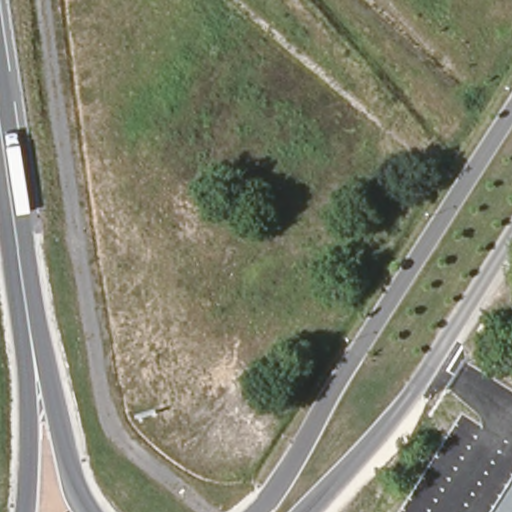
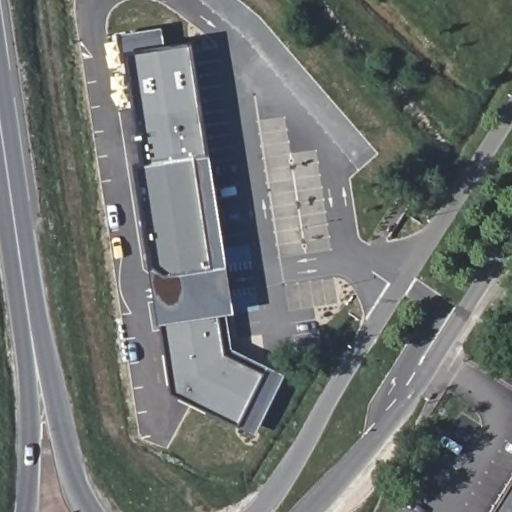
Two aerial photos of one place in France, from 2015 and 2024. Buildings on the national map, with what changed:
new [(254,433),(170,392),(159,324),(150,268),(135,162),(143,161),(125,52),(122,53),(119,33),(160,27),(164,46),(191,41),(206,154),(208,154),(233,313),(225,313),(230,348),(283,375),(254,433)]
unchanged [(512,488),(512,512),(497,512),(512,488)]

